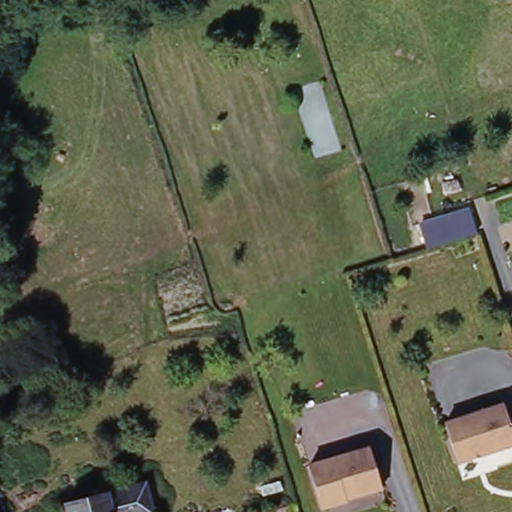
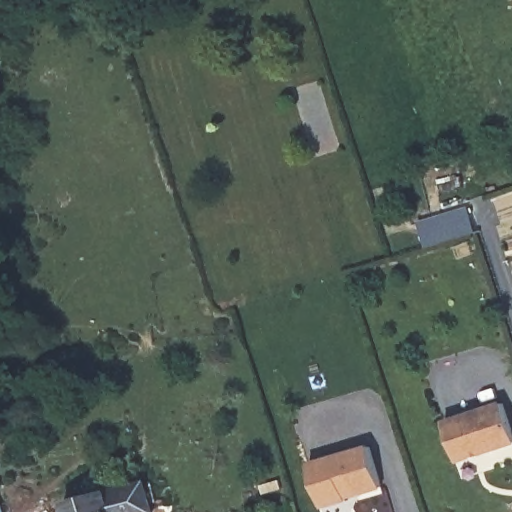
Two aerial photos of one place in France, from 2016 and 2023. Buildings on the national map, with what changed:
unchanged [(423,230),(471,215),(473,221),(478,239),(430,253),(424,235),(423,230)]
unchanged [(488,455),(462,465),(449,425),(509,405),(512,414),(512,448),(488,455)]
unchanged [(371,449),(383,490),(356,498),(344,502),(344,505),(325,511),(312,467),(371,449)]
unchanged [(156,512),(71,512),(69,505),(111,493),(108,478),(140,470),(144,485),(149,483),(156,512)]

